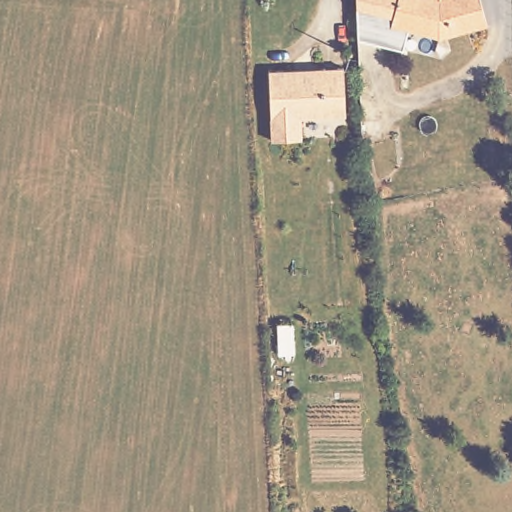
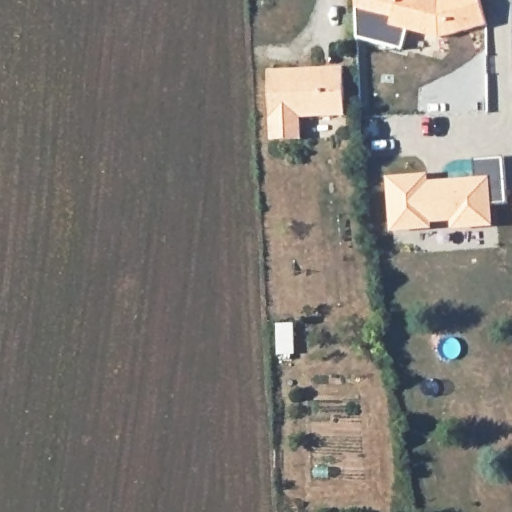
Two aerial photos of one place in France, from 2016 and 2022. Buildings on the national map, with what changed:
unchanged [(394,6),(393,13),(403,15),(399,29),(410,31),(404,50),(359,39),(357,0),(394,0),(394,6)]
unchanged [(394,0),(442,0),(444,0),(446,0),(484,0),(494,31),(454,44),(410,31),(399,29),(403,15),(393,13),(394,0)]
unchanged [(270,72),(342,66),(347,115),(303,119),(305,144),(274,144),(270,72)]
new [(430,173),(430,180),(477,177),(475,160),(504,157),(510,205),(494,205),(496,227),(453,231),(451,223),(432,225),(432,230),(391,232),(387,177),(430,173)]

